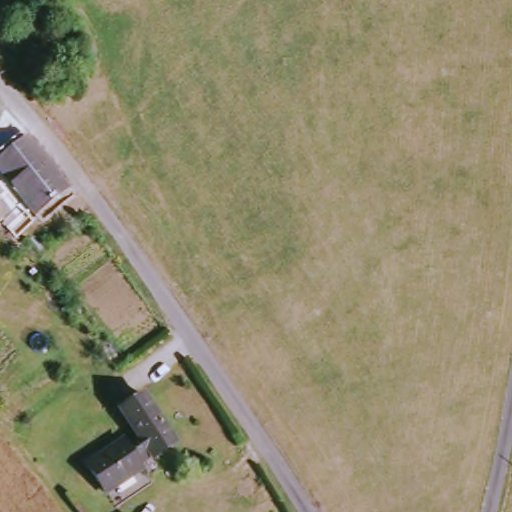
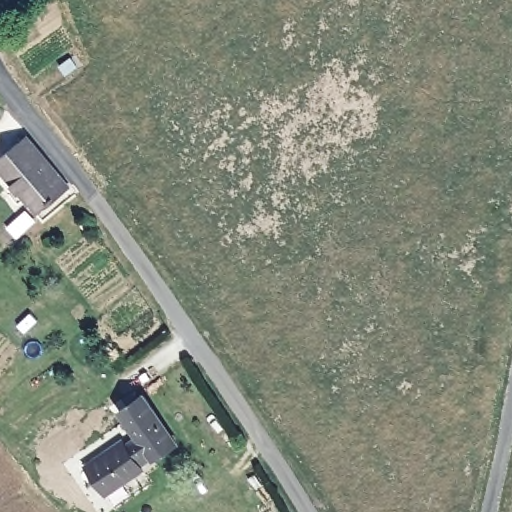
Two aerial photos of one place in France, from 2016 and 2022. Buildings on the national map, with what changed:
unchanged [(70,190),(68,194),(71,197),(54,214),(47,207),(37,215),(0,167),(0,156),(25,135),(70,190)]
unchanged [(17,238),(6,229),(26,210),(35,219),(17,238)]
unchanged [(154,454),(148,447),(137,455),(142,463),(105,487),(85,459),(122,434),(125,439),(137,431),(120,403),(143,388),(176,438),(154,454)]

